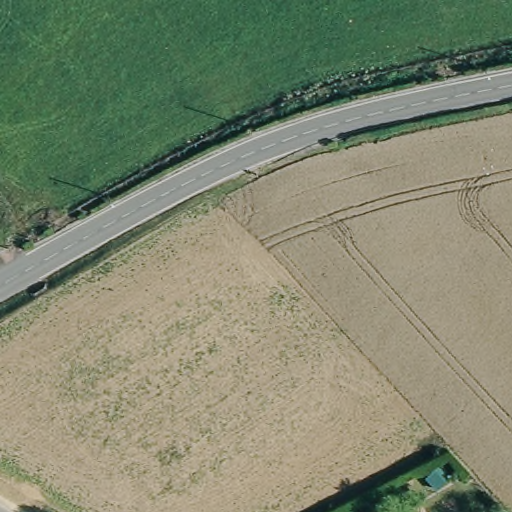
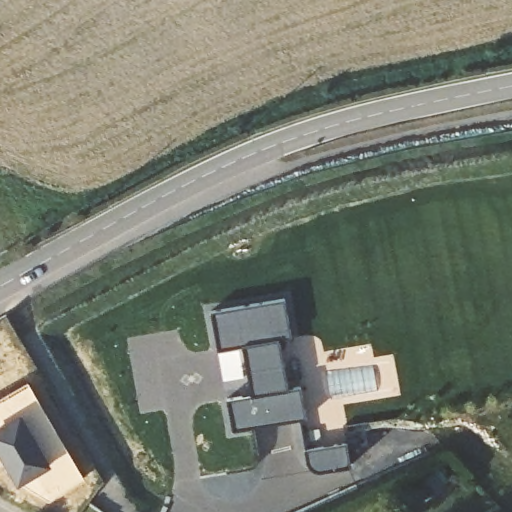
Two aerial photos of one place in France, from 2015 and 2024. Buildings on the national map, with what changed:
new [(283,302),(288,342),(278,344),(286,392),(299,391),(301,424),(229,436),(226,403),(248,400),(239,351),(217,354),(211,315),(283,302)]
new [(85,479),(49,500),(21,482),(18,484),(0,453),(0,399),(28,382),(85,479)]

